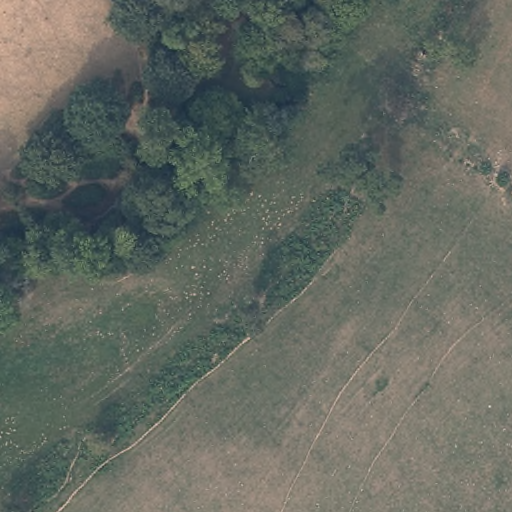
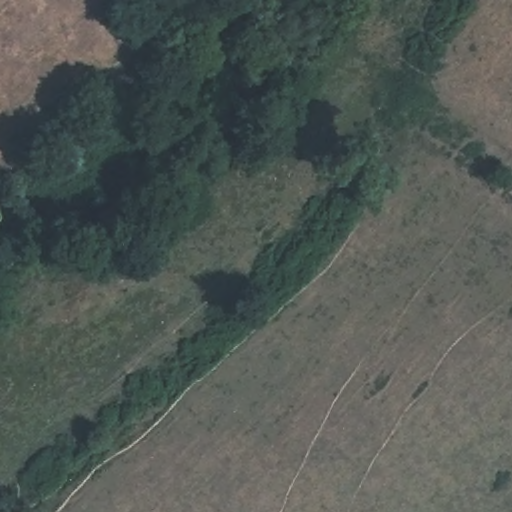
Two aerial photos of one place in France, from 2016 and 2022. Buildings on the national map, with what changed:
[]

